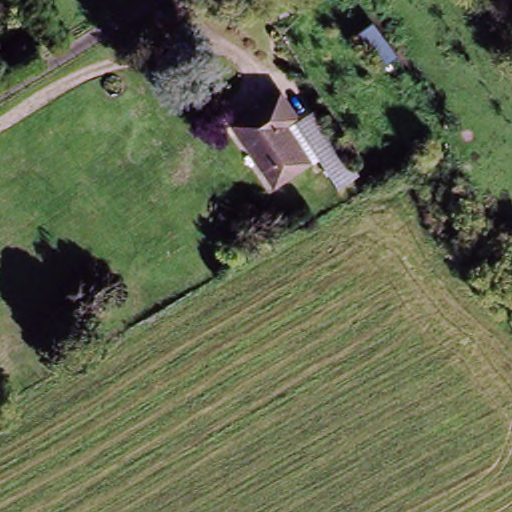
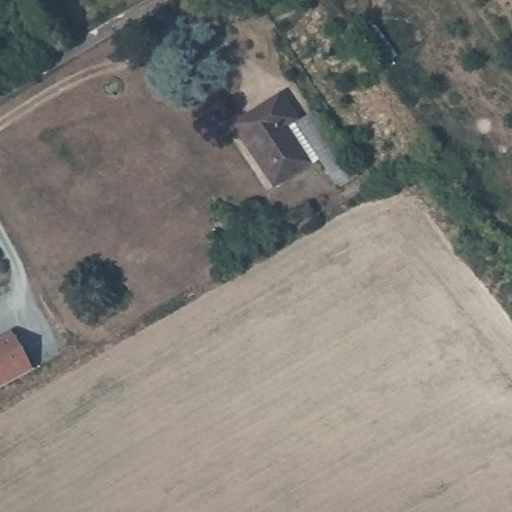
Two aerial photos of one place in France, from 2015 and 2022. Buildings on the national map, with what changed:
unchanged [(266,98),(286,123),(278,129),(306,164),(270,190),(223,130),(266,98)]
unchanged [(338,190),(313,158),(291,129),(311,115),(334,145),(358,174),(338,190)]
new [(11,333),(32,370),(0,388),(0,339),(11,333)]

